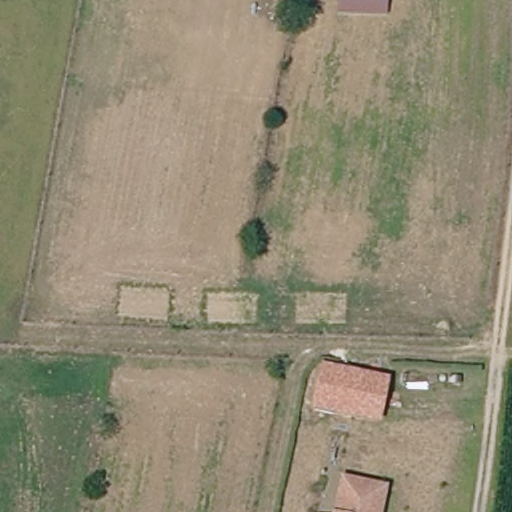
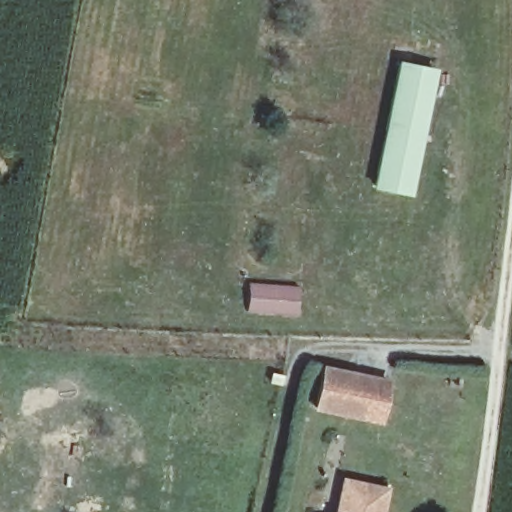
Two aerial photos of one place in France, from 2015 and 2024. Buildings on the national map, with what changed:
new [(411,195),(377,188),(389,129),(384,129),(398,60),(437,69),(411,195)]
new [(298,315),(247,311),(249,282),(300,286),(298,315)]
unchanged [(323,363),(389,377),(378,422),(313,410),(323,363)]
unchanged [(341,488),(382,497),(379,512),(337,512),(341,488)]

